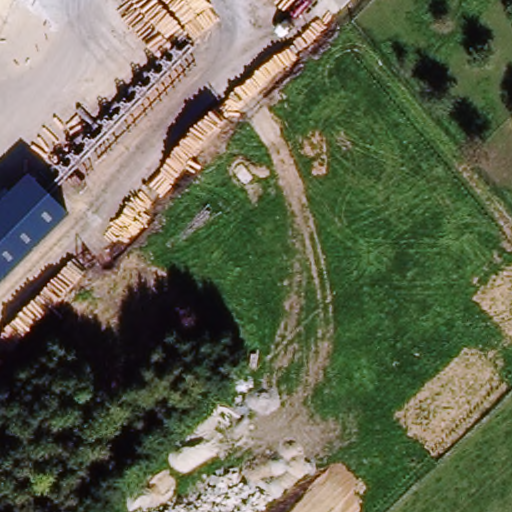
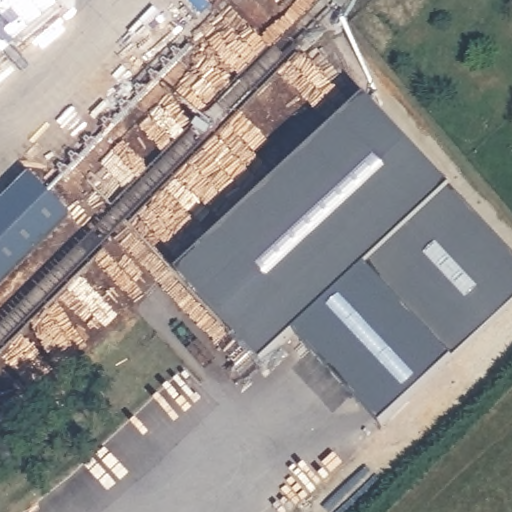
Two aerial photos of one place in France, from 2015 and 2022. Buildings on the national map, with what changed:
new [(452,188),(512,253),(512,305),(452,361),(367,267),(261,364),(177,273),(366,97),(452,188)]
unchanged [(0,283),(0,204),(30,174),(69,214),(0,283)]

